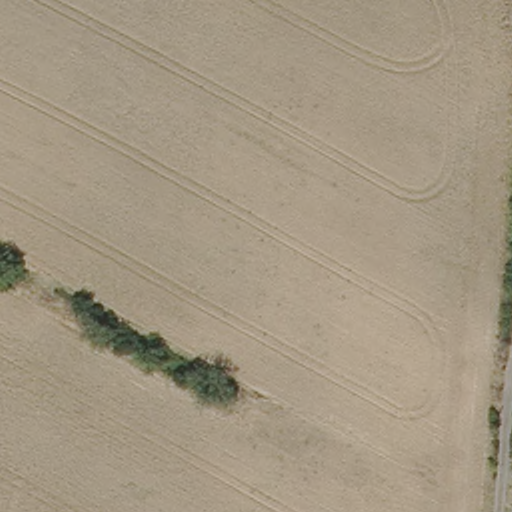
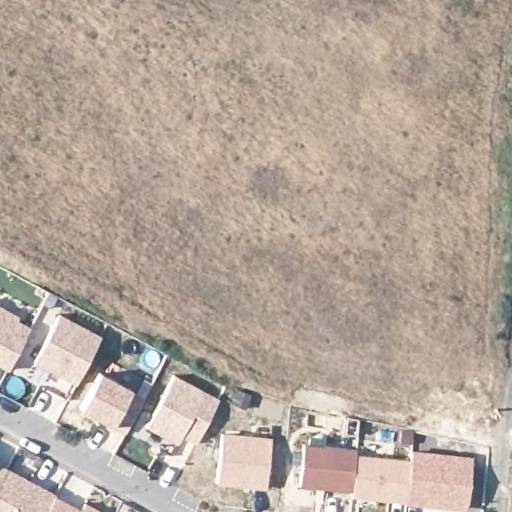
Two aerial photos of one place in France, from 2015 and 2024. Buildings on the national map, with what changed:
new [(0,361),(0,300),(21,312),(19,315),(32,322),(9,366),(0,361)]
new [(78,378),(36,356),(63,306),(105,329),(78,378)]
new [(81,405),(100,369),(132,387),(131,390),(144,397),(126,429),(81,405)]
new [(181,433),(177,440),(146,424),(174,371),(219,394),(195,440),(181,433)]
new [(270,440),(267,486),(219,480),(223,435),(270,440)]
new [(358,448),(357,455),(410,458),(412,450),(473,458),(465,510),(351,498),(352,492),(298,485),(303,443),(358,448)]
new [(56,494),(54,498),(45,512),(0,512),(0,464),(56,494)]
new [(79,512),(45,512),(54,498),(79,512)]
new [(86,503),(101,511),(100,512),(80,512),(86,503)]

